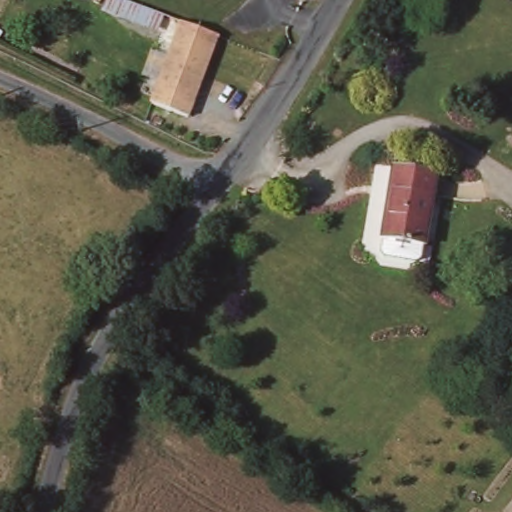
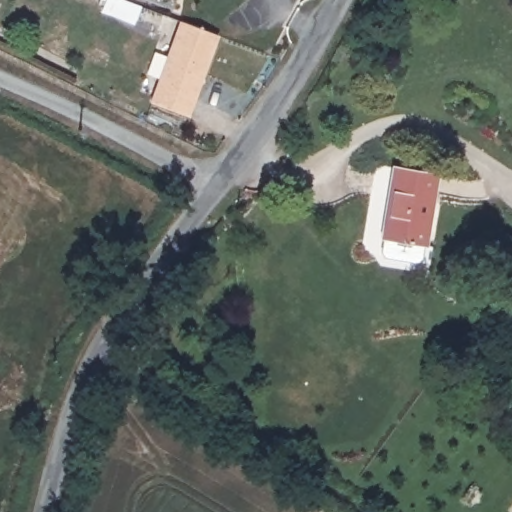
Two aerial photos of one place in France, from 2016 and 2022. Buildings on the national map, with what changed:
unchanged [(188,117),(151,103),(181,22),(218,36),(188,117)]
unchanged [(424,251),(377,241),(391,169),(437,178),(424,251)]

